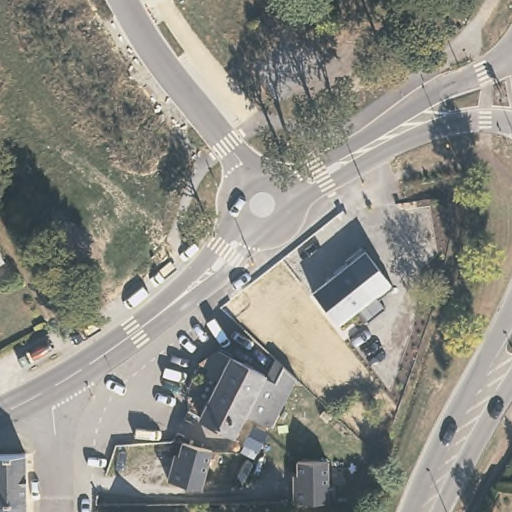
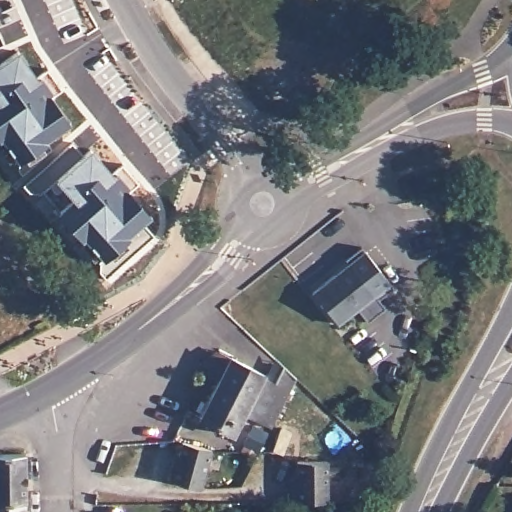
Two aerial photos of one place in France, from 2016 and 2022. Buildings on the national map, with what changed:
new [(73,122),(17,165),(1,140),(0,141),(0,60),(19,45),(73,122)]
new [(140,252),(127,263),(124,266),(110,252),(99,258),(54,215),(40,191),(52,179),(89,146),(125,190),(126,189),(150,215),(138,227),(149,238),(151,241),(140,252)]
demolished [(126,240),(125,239),(138,227),(149,238),(136,249),(135,250),(126,240)]
unchanged [(394,286),(377,300),(373,295),(338,323),(311,291),(363,250),(394,286)]
unchanged [(0,258),(0,251),(3,257),(0,258)]
unchanged [(407,365),(396,375),(402,382),(391,391),(375,371),(397,353),(407,365)]
unchanged [(261,375),(265,377),(275,360),(281,364),(295,376),(270,425),(242,412),(232,432),(198,415),(228,356),(261,373),(261,375)]
unchanged [(266,430),(256,448),(241,440),(251,422),(266,430)]
unchanged [(174,467),(178,468),(185,445),(215,453),(204,490),(170,481),(174,467)]
unchanged [(26,455),(26,501),(26,512),(0,512),(0,456),(10,455),(26,455)]
unchanged [(294,501),(294,499),(294,487),(298,487),(298,463),(328,463),(328,497),(328,501),(294,502),(294,501)]

